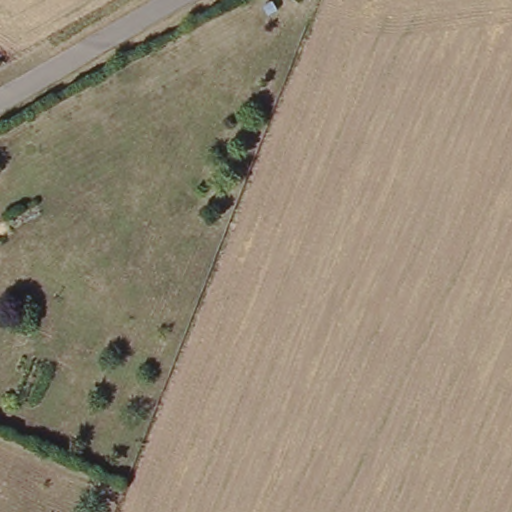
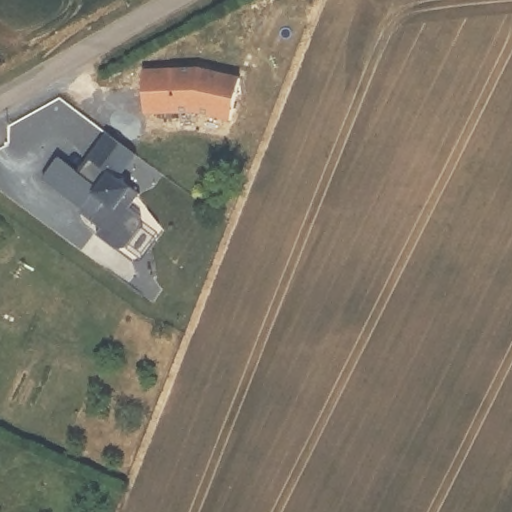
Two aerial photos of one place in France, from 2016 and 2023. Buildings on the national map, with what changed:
new [(204,66),(244,78),(232,120),(200,111),(146,113),(145,68),(204,66)]
new [(61,154),(82,170),(109,132),(140,154),(122,177),(140,192),(127,206),(145,220),(123,251),(95,232),(100,223),(45,177),(61,154)]

